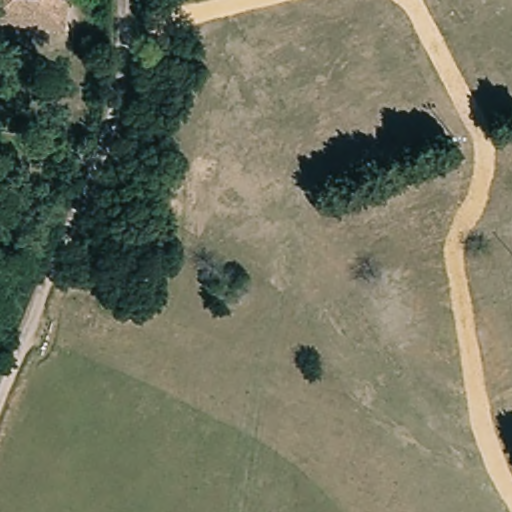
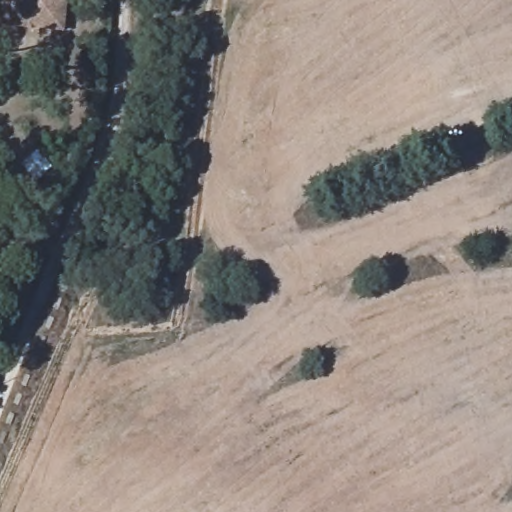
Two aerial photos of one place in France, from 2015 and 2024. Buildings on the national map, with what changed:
unchanged [(61,30),(0,23),(0,0),(64,0),(61,30)]

